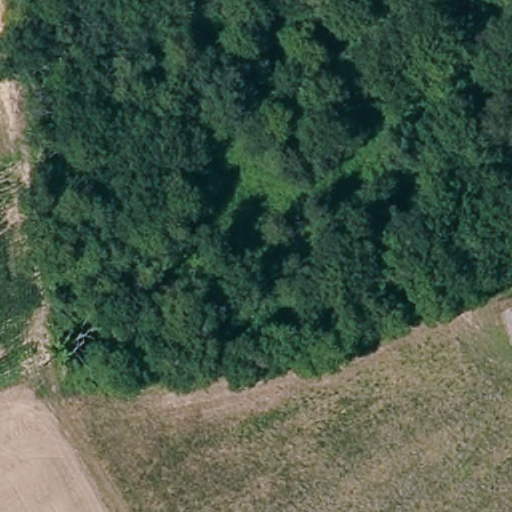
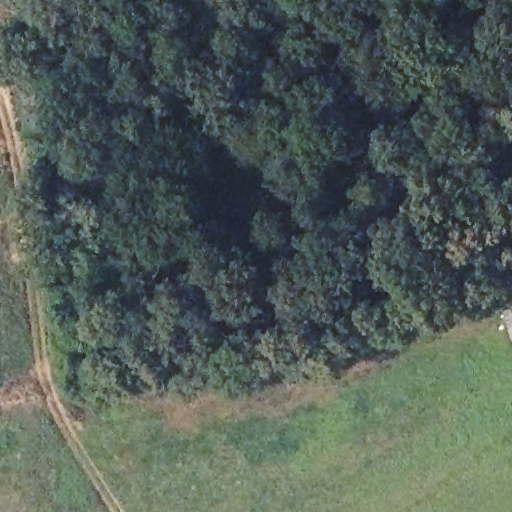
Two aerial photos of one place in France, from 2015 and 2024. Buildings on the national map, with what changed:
unchanged [(512,336),(504,315),(512,312),(512,336)]

